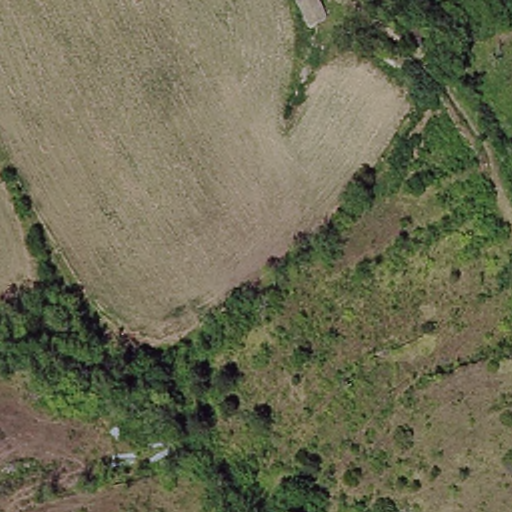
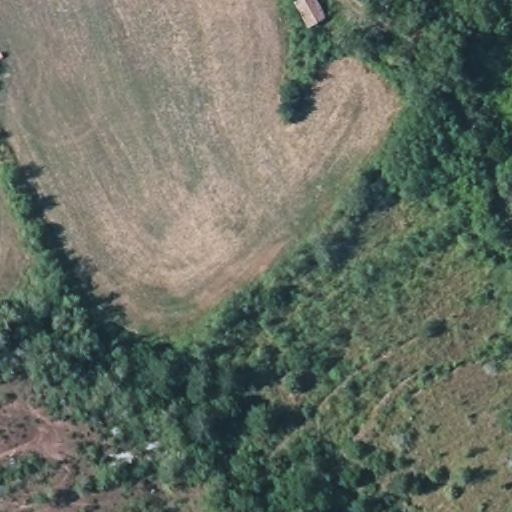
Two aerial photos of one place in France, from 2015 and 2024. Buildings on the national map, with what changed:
unchanged [(326,18),(309,30),(293,2),(296,0),(316,0),(326,18)]

